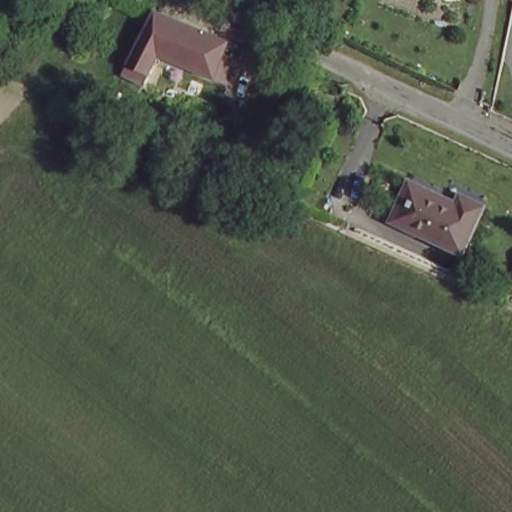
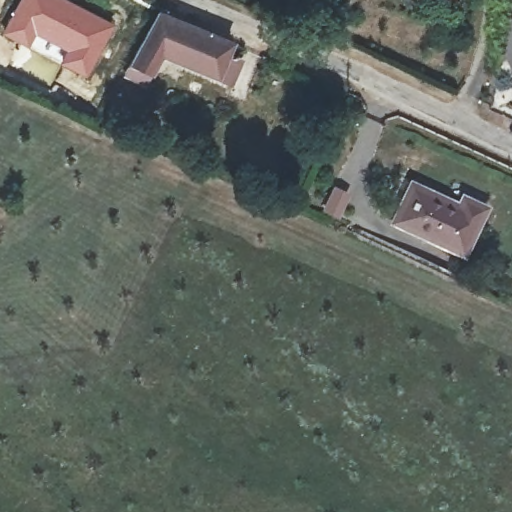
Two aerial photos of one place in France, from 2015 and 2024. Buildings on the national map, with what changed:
new [(68,0),(112,23),(83,76),(59,64),(65,52),(35,38),(30,48),(1,34),(18,0),(68,0)]
unchanged [(159,11),(233,43),(227,55),(239,61),(227,84),(161,58),(147,86),(125,75),(159,11)]
unchanged [(462,254),(396,224),(414,184),(447,197),(453,182),(486,194),(462,254)]

